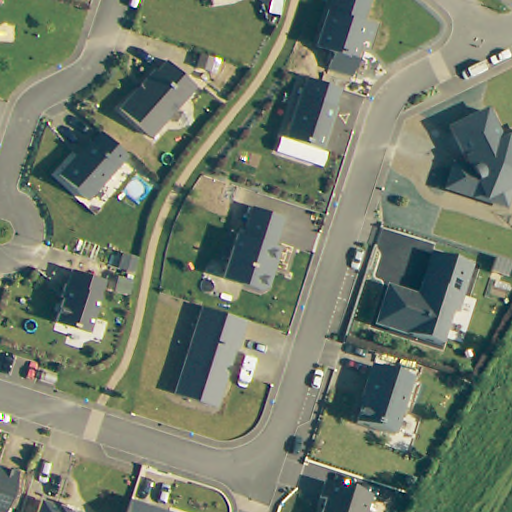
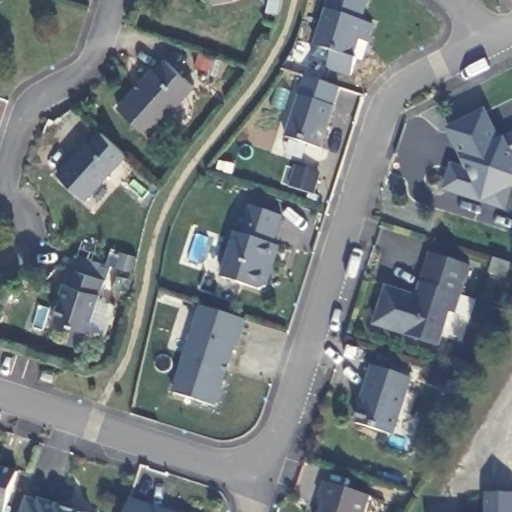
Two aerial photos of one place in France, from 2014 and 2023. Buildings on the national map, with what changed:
unchanged [(376,25),(370,45),(362,42),(352,75),(326,68),(332,51),(315,46),(330,0),(370,0),(364,21),(376,25)]
unchanged [(117,105),(153,66),(155,68),(165,57),(193,83),(148,132),(117,105)]
unchanged [(298,91),(299,92),(306,73),(339,84),(333,102),(333,103),(320,145),(284,134),(298,91)]
unchanged [(499,140),(512,133),(512,183),(509,185),(503,205),(445,185),(451,167),(465,171),(467,165),(448,126),(484,109),(499,140)]
unchanged [(57,171),(87,137),(89,139),(99,128),(121,148),(125,151),(85,196),(57,171)]
unchanged [(235,230),(241,231),(251,203),(281,212),(272,241),(278,243),(273,259),(268,257),(265,266),(269,272),(265,282),(259,285),(221,273),(235,230)]
unchanged [(386,285),(408,291),(406,300),(414,303),(416,294),(431,250),(470,262),(454,311),(449,309),(439,342),(374,322),(386,285)]
unchanged [(53,317),(61,293),(58,292),(63,280),(65,280),(70,265),(104,276),(87,328),(53,317)]
unchanged [(172,390),(200,302),(244,316),(235,345),(233,343),(227,360),(224,362),(223,367),(225,368),(214,403),(172,390)]
unchanged [(355,420),(363,395),(361,393),(371,362),(411,375),(393,432),(355,420)]
unchanged [(16,468),(3,509),(0,508),(0,463),(16,468)]
unchanged [(324,497),(318,495),(323,478),(370,493),(363,512),(319,512),(324,497)]
new [(486,493),(512,494),(512,512),(486,512),(486,493)]
unchanged [(39,496),(86,512),(34,512),(39,496)]
unchanged [(145,501),(174,512),(141,512),(145,501)]

